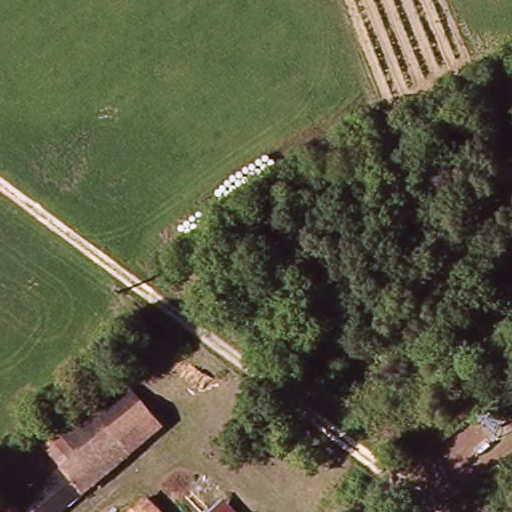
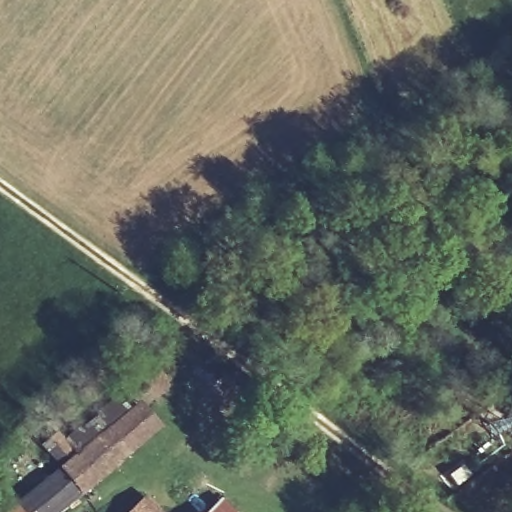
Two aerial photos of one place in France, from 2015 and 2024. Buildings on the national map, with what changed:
unchanged [(0,489),(22,472),(36,485),(48,475),(35,456),(42,449),(38,445),(56,429),(61,434),(147,369),(159,379),(161,376),(189,407),(62,512),(0,512),(0,489)]
unchanged [(163,512),(130,512),(148,496),(163,512)]
unchanged [(223,498),(236,512),(209,512),(223,498)]

